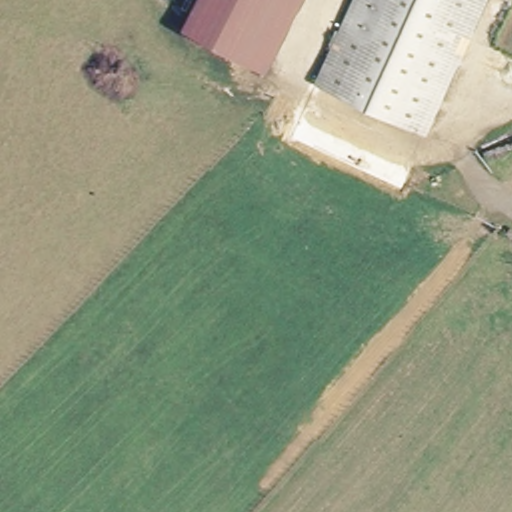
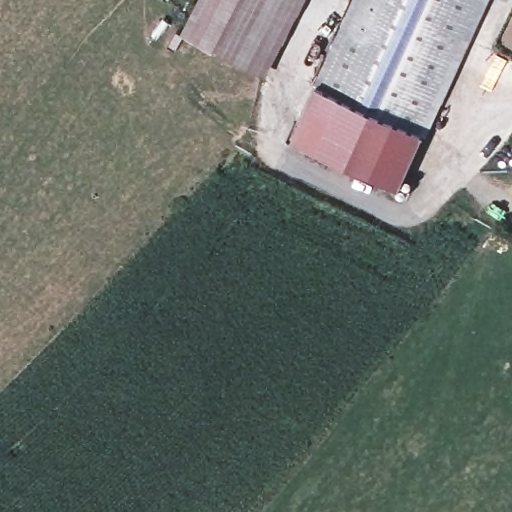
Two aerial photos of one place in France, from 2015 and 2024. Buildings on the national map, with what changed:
unchanged [(180,34),(197,0),(306,0),(267,76),(180,34)]
unchanged [(445,0),(440,9),(476,26),(425,133),(423,132),(319,82),(359,0),(445,0)]
unchanged [(445,0),(512,0),(512,13),(511,14),(487,3),(476,26),(440,9),(445,0)]
new [(319,82),(423,132),(399,191),(290,143),(319,82)]

